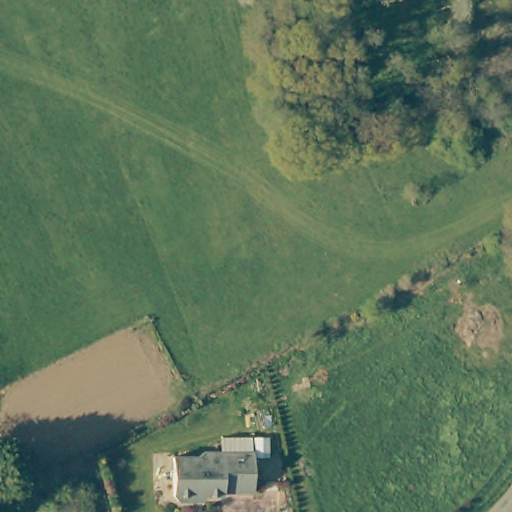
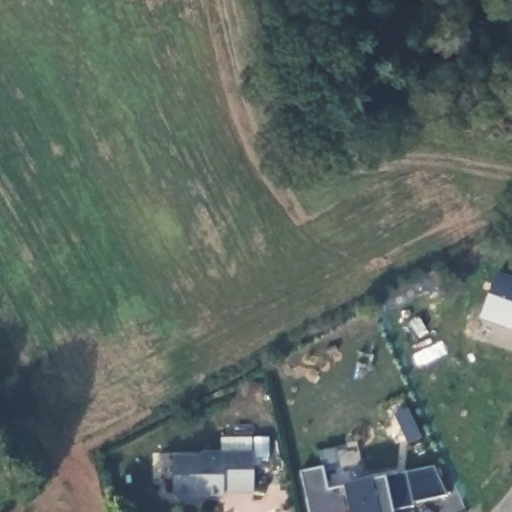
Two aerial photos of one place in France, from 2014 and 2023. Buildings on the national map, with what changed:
unchanged [(198,501),(194,505),(187,506),(179,503),(177,500),(177,461),(206,462),(205,456),(257,456),(258,485),(259,499),(228,498),(227,501),(219,501),(198,501)]
new [(322,468),(326,490),(344,486),(433,468),(445,496),(412,503),(412,506),(391,508),(392,512),(310,512),(301,471),(322,468)]

